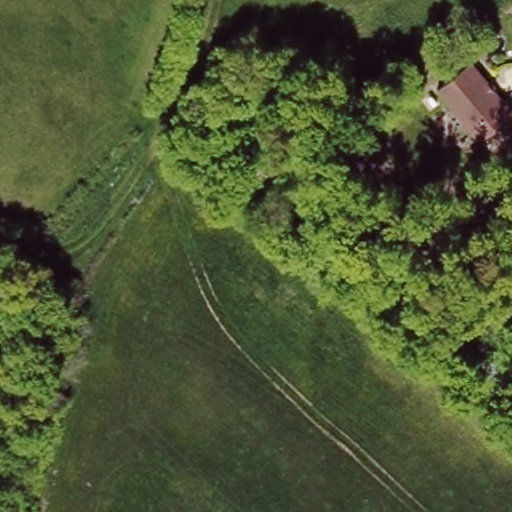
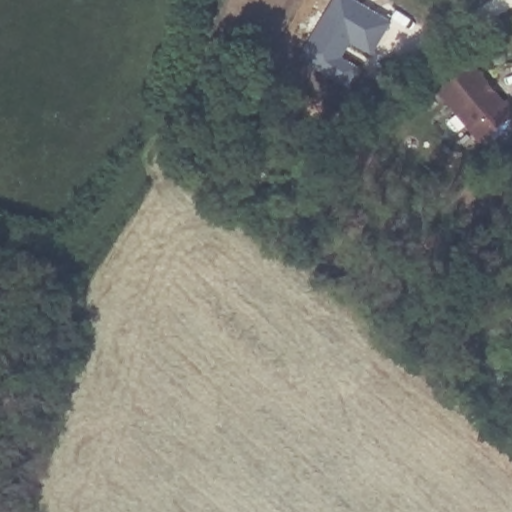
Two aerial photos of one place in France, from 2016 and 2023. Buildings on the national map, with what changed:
new [(352,0),(385,19),(366,51),(345,38),(334,56),(352,66),(342,83),(295,55),(328,0),(352,0)]
unchanged [(470,58),(502,98),(505,95),(512,104),(512,112),(477,139),(437,86),(470,58)]

